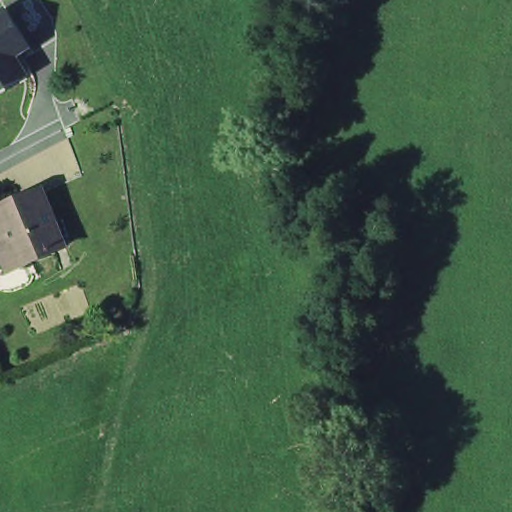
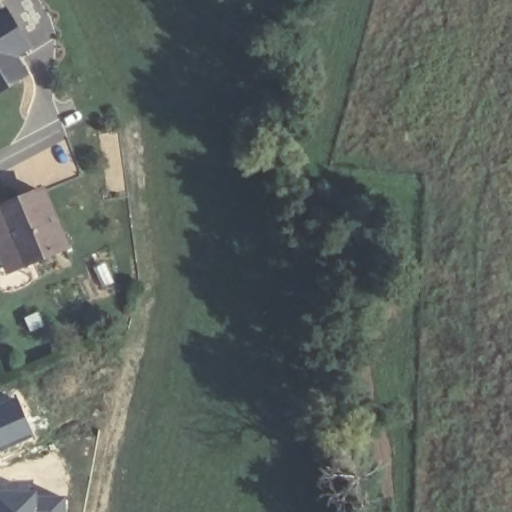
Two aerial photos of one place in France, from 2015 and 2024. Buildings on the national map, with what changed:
unchanged [(0,85),(0,10),(5,6),(29,42),(15,51),(20,59),(27,69),(19,74),(0,85)]
unchanged [(0,204),(2,203),(45,185),(67,240),(25,257),(11,263),(0,236),(0,204)]
new [(35,435),(0,452),(0,402),(16,396),(35,435)]
new [(67,496),(67,512),(0,512),(0,490),(37,490),(37,493),(67,496)]

